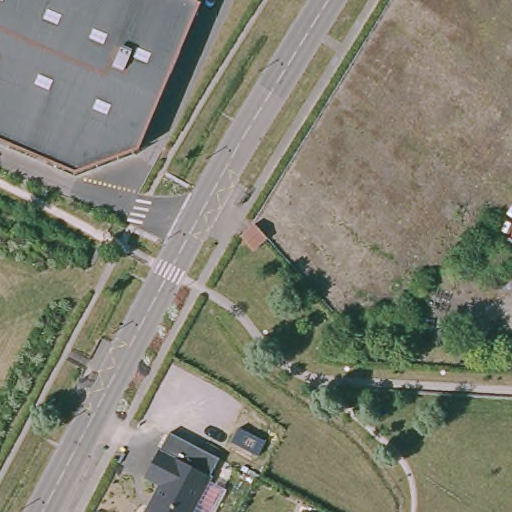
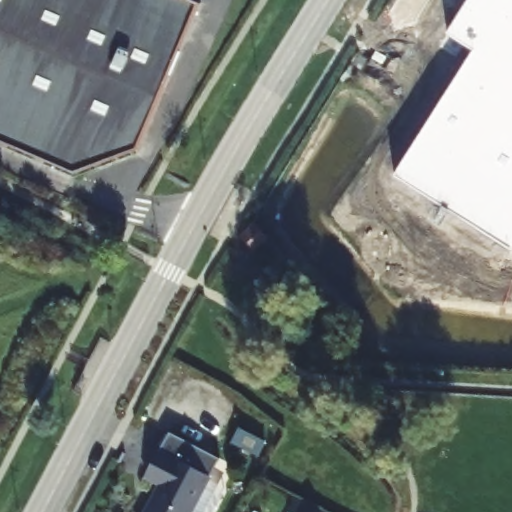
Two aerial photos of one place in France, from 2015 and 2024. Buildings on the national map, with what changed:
unchanged [(0,143),(0,0),(189,0),(200,5),(139,149),(72,175),(0,143)]
new [(395,175),(474,50),(447,34),(468,0),(512,0),(512,248),(395,175)]
unchanged [(263,243),(249,256),(237,241),(250,229),(263,243)]
new [(237,427),(265,441),(257,456),(230,442),(237,427)]
unchanged [(145,476),(158,450),(174,457),(183,440),(215,456),(219,458),(210,476),(194,506),(191,512),(146,512),(160,485),(145,476)]

